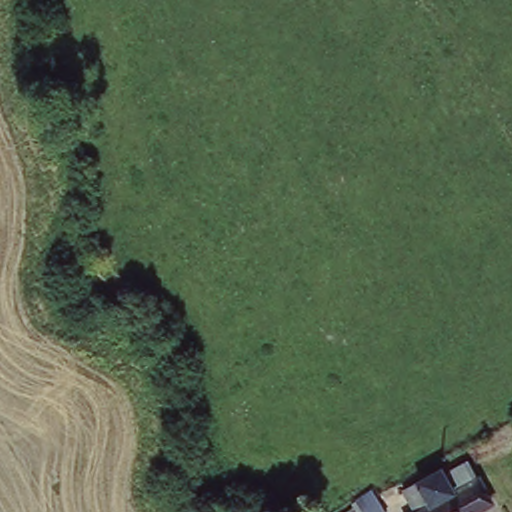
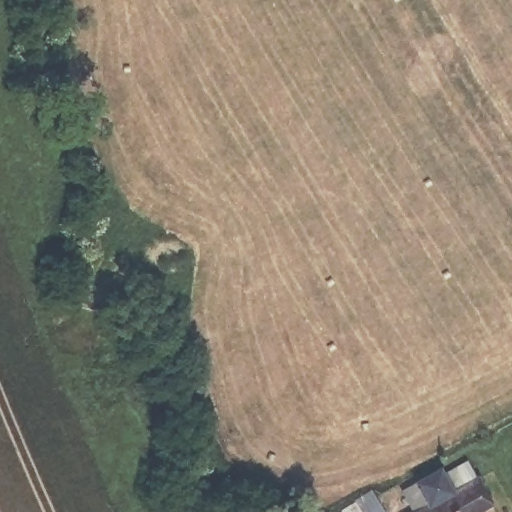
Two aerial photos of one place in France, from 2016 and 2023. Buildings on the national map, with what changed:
unchanged [(477,477),(491,501),(472,512),(411,512),(415,510),(412,505),(403,488),(426,474),(441,466),(454,490),(477,477)]
unchanged [(373,512),(350,512),(367,502),(373,512)]

